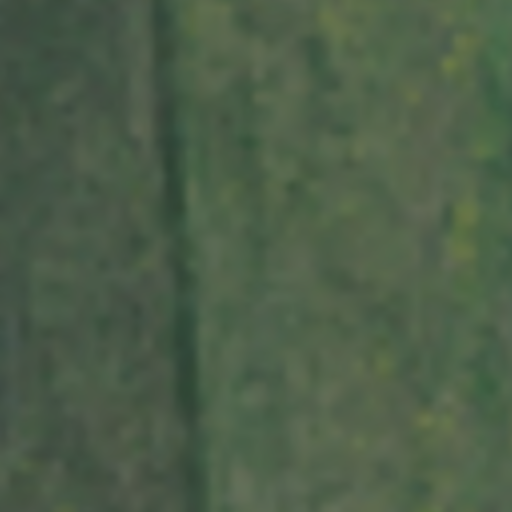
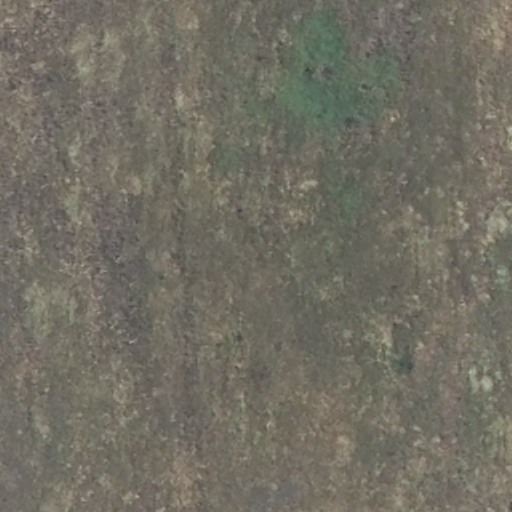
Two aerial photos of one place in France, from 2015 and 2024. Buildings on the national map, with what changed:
[]

